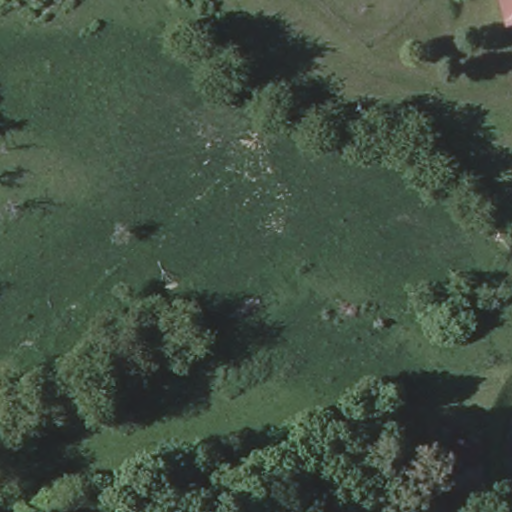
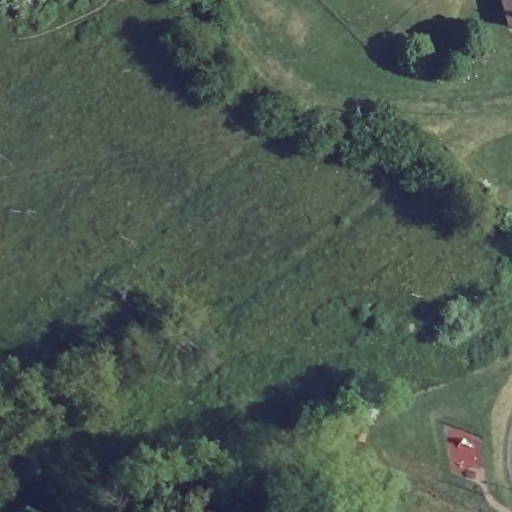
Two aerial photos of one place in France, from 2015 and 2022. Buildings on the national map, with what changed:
unchanged [(512,0),(512,30),(503,32),(499,0),(512,0)]

